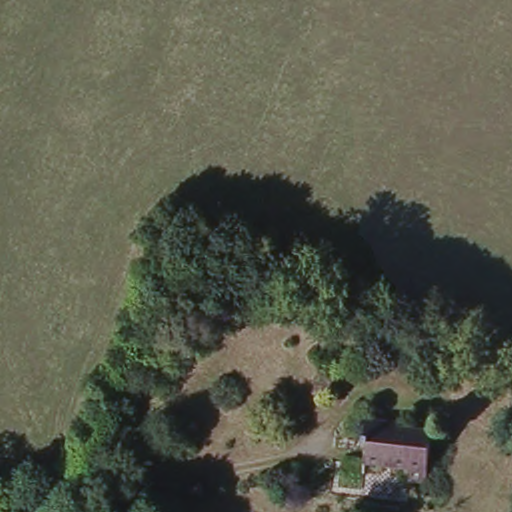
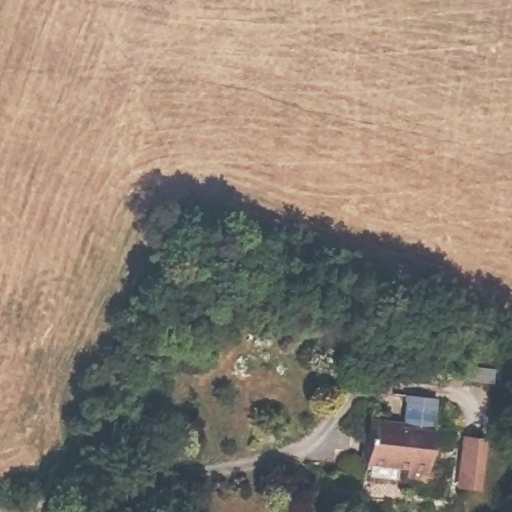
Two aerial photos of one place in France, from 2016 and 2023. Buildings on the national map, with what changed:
unchanged [(402,417),(405,392),(435,395),(426,479),(400,478),(402,463),(362,460),(365,438),(361,438),(365,415),(402,417)]
new [(487,435),(481,488),(458,487),(463,432),(487,435)]

